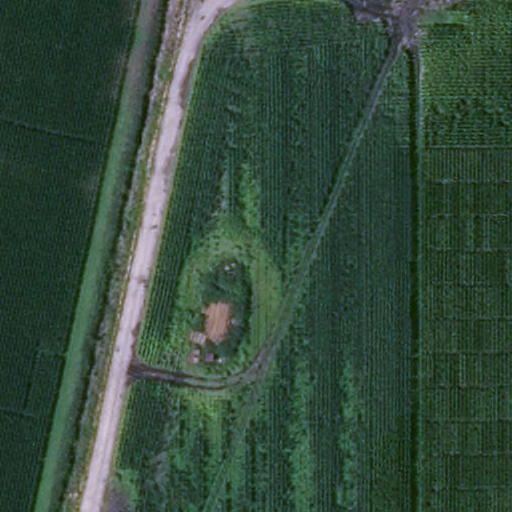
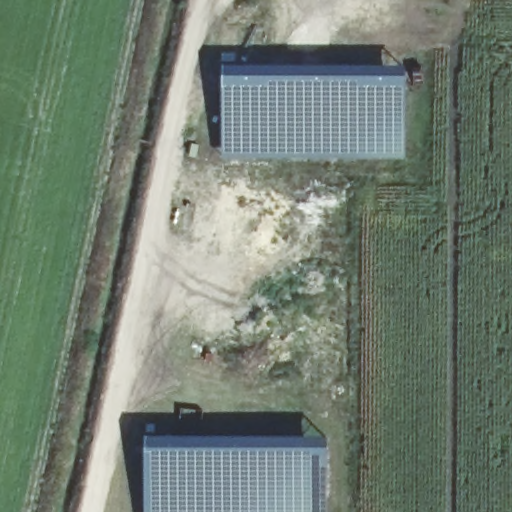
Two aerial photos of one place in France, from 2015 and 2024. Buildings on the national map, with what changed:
new [(222,158),(221,75),(222,66),(406,65),(404,77),(405,160),(222,158)]
new [(145,435),(160,435),(160,440),(202,442),(202,440),(235,439),(267,443),(327,443),(327,478),(325,512),(145,512),(145,435)]

